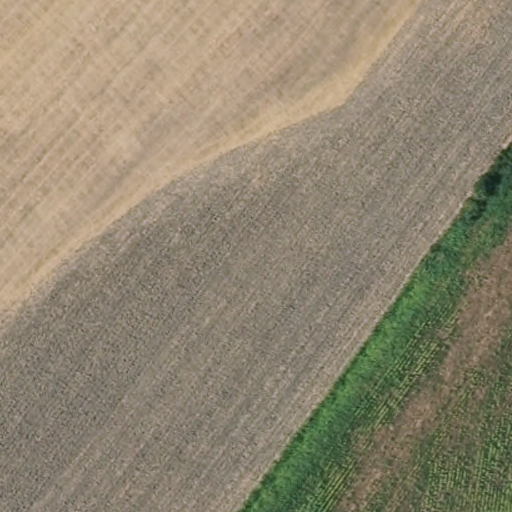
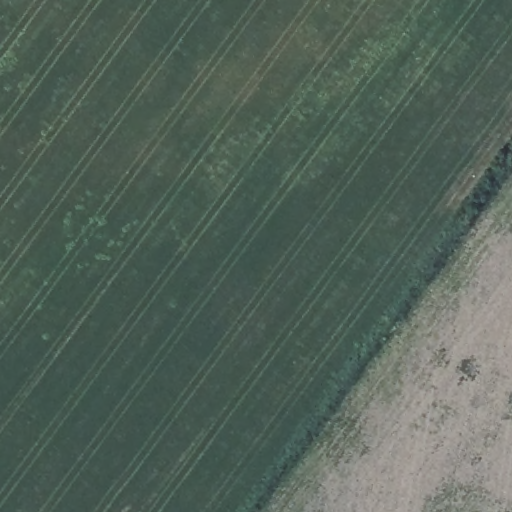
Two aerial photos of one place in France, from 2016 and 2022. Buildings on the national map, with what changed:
[]

